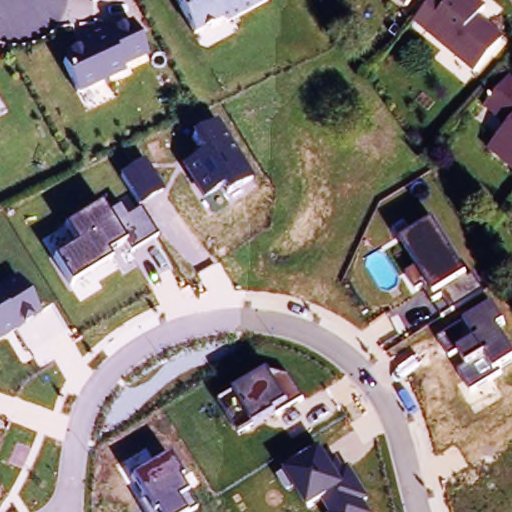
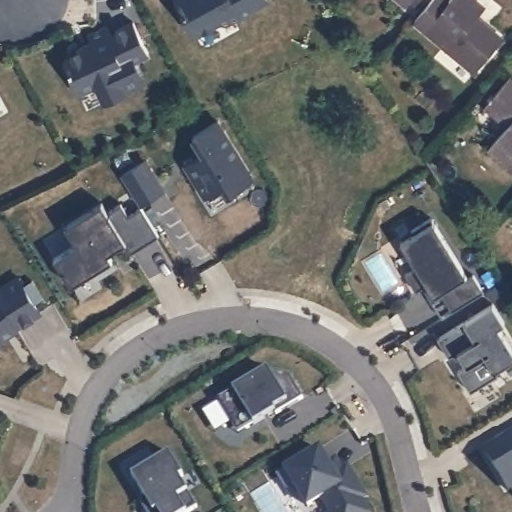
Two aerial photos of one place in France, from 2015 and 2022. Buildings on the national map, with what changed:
unchanged [(228,24),(222,20),(195,35),(176,0),(271,0),(272,1),(228,24)]
unchanged [(416,0),(407,11),(393,0),(416,0)]
unchanged [(477,23),(502,44),(475,75),(426,33),(413,22),(432,0),(443,0),(450,5),(454,0),(474,0),(487,11),(477,23)]
unchanged [(65,55),(96,44),(93,37),(135,19),(150,53),(128,64),(129,69),(82,95),(65,55)]
unchanged [(488,154),(506,130),(484,111),(508,84),(512,86),(512,174),(488,154)]
unchanged [(184,161),(203,151),(192,129),(219,116),(254,175),(226,190),(222,184),(203,198),(184,161)]
unchanged [(163,187),(141,200),(124,171),(146,156),(163,187)]
unchanged [(76,243),(66,223),(102,203),(107,212),(120,204),(126,214),(142,208),(158,234),(132,250),(126,240),(107,252),(111,259),(71,282),(56,256),(76,243)]
unchanged [(465,272),(469,269),(482,289),(453,307),(445,295),(433,300),(425,285),(416,290),(407,273),(420,267),(403,238),(433,219),(465,272)]
unchanged [(42,313),(0,338),(0,285),(19,275),(42,313)]
unchanged [(464,320),(492,304),(503,322),(498,326),(512,349),(512,357),(500,364),(502,371),(470,391),(460,371),(467,366),(458,349),(448,353),(437,335),(464,320)]
unchanged [(235,387),(267,370),(287,374),(303,399),(235,434),(217,399),(235,387)]
new [(497,472),(485,450),(512,433),(512,489),(510,491),(497,472)]
unchanged [(320,447),(330,460),(337,457),(344,468),(349,465),(368,495),(365,498),(372,512),(330,512),(321,499),(309,505),(296,486),(285,492),(275,473),(320,447)]
unchanged [(170,451),(185,474),(179,477),(197,507),(187,512),(146,512),(139,501),(145,497),(132,472),(170,451)]

